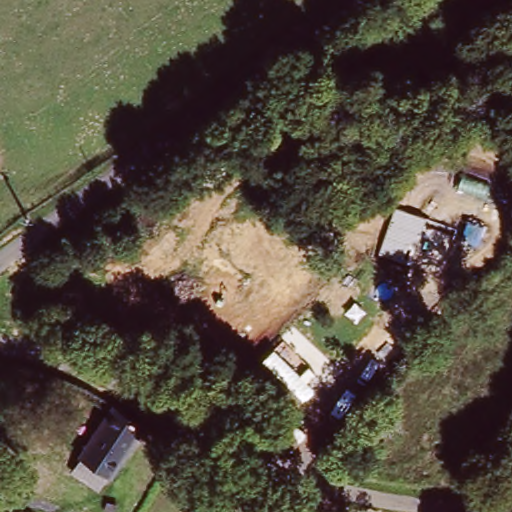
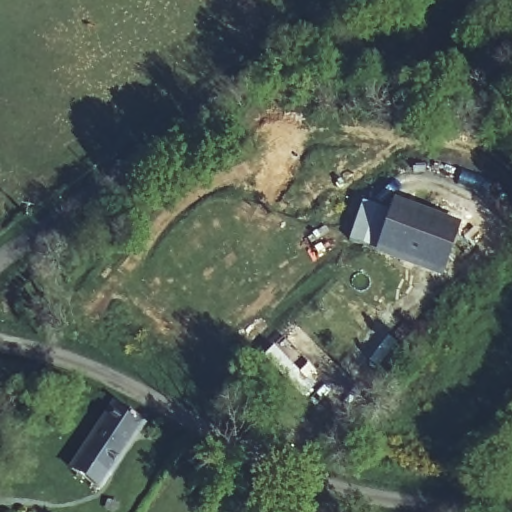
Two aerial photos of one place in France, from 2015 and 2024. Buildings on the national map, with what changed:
new [(461,224),(442,277),(375,253),(377,248),(350,240),(363,201),(390,211),(394,199),(461,224)]
unchanged [(79,456),(75,453),(107,404),(137,423),(108,472),(103,469),(94,483),(72,468),(79,456)]

